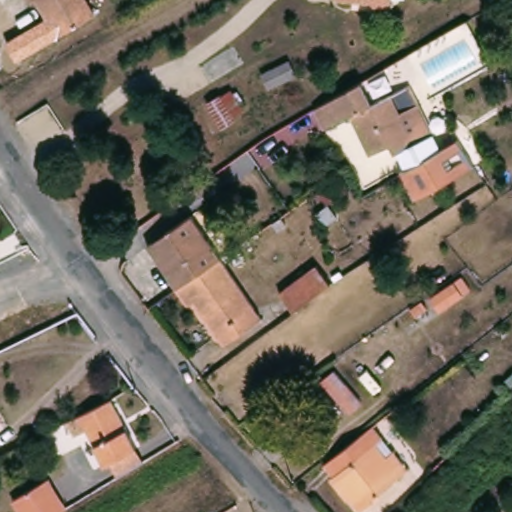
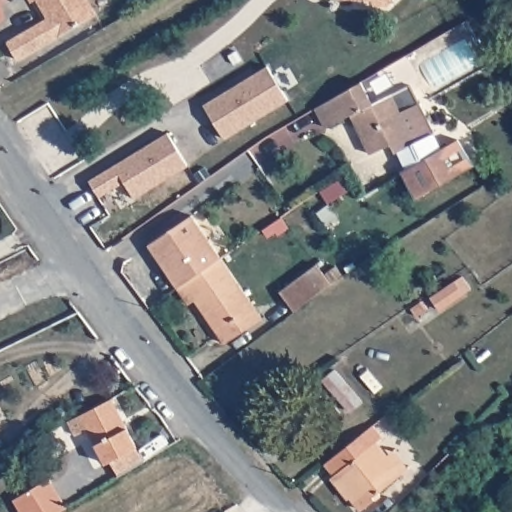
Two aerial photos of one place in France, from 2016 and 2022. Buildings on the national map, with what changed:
unchanged [(99,17),(62,38),(41,1),(35,4),(32,0),(89,0),(99,17)]
unchanged [(348,2),(347,0),(375,0),(348,2)]
unchanged [(398,3),(387,4),(383,0),(401,0),(398,3)]
new [(467,41),(479,65),(433,87),(422,62),(467,41)]
demolished [(200,66),(235,45),(245,62),(226,74),(211,83),(200,66)]
demolished [(297,74),(268,87),(261,73),(290,60),(297,74)]
new [(267,65),(288,101),(224,138),(203,104),(267,65)]
unchanged [(403,149),(398,152),(394,144),(375,152),(355,115),(329,129),(316,110),(363,81),(373,100),(417,83),(438,133),(403,149)]
demolished [(242,109),(233,114),(236,120),(222,128),(208,104),(221,96),(222,98),(232,92),(242,109)]
new [(188,166),(135,197),(125,180),(98,195),(89,180),(168,132),(188,166)]
unchanged [(438,133),(445,146),(460,137),(475,163),(417,196),(404,168),(403,149),(438,133)]
unchanged [(152,244),(196,215),(226,257),(182,287),(152,244)]
unchanged [(226,257),(266,317),(229,343),(200,300),(194,304),(182,287),(226,257)]
unchanged [(285,291),(321,263),(337,283),(299,311),(285,291)]
unchanged [(463,293),(440,309),(431,296),(455,280),(463,293)]
unchanged [(361,401),(349,412),(323,380),(335,370),(361,401)]
unchanged [(121,473),(114,458),(110,460),(91,425),(78,432),(71,418),(84,411),(115,395),(140,443),(147,457),(121,473)]
unchanged [(376,424),(386,436),(380,441),(391,455),(398,449),(413,467),(406,473),(382,492),(384,495),(366,510),(355,495),(353,498),(335,477),(340,473),(330,461),(369,430),(376,424)]
unchanged [(0,427),(0,426),(1,427),(0,427)]
unchanged [(66,508),(60,512),(21,512),(14,499),(49,479),(56,492),(66,508)]

